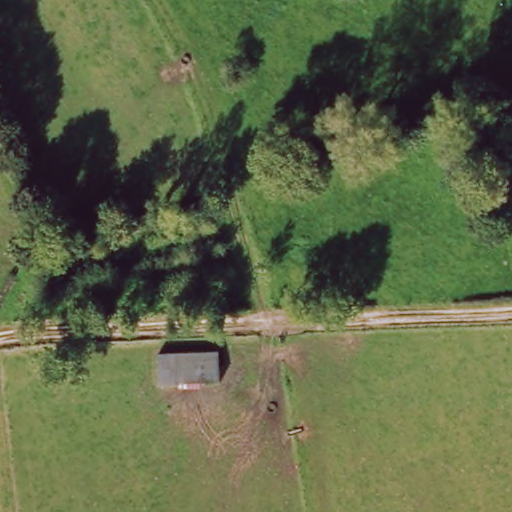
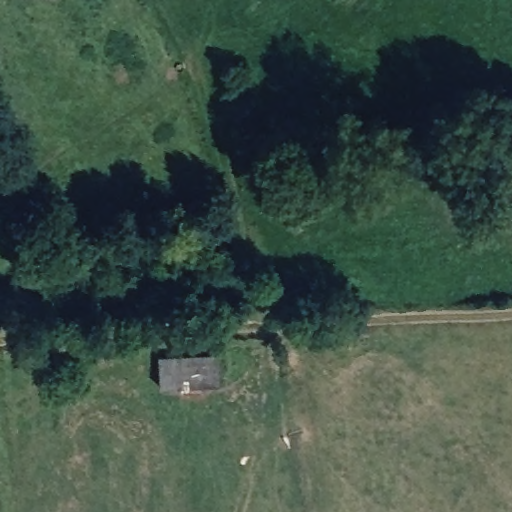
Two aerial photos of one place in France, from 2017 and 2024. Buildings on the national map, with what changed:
unchanged [(153,389),(154,356),(219,354),(220,388),(153,389)]

